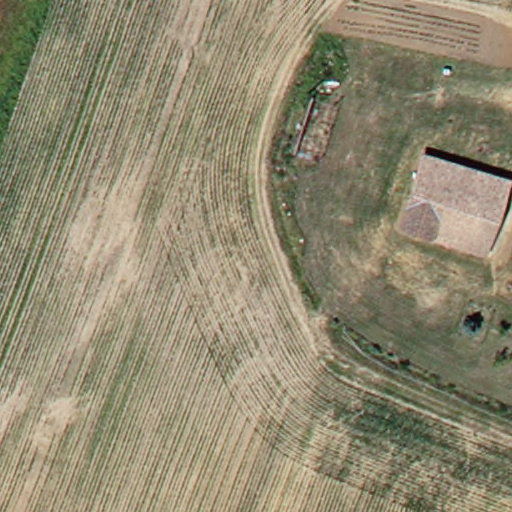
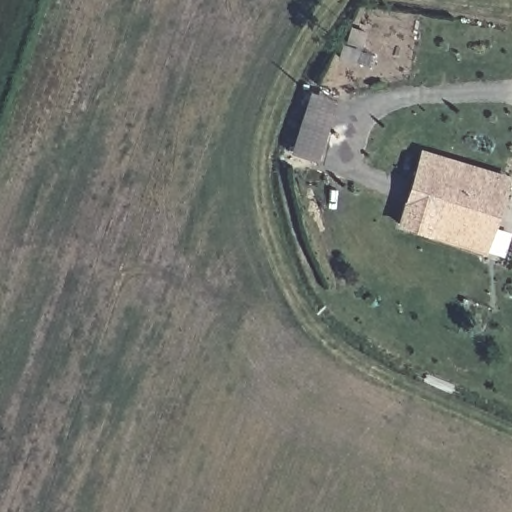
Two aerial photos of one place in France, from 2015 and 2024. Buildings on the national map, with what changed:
new [(310,92),(337,100),(318,163),(291,154),(310,92)]
unchanged [(486,247),(407,220),(429,146),(509,171),(502,190),(493,225),(486,247)]

